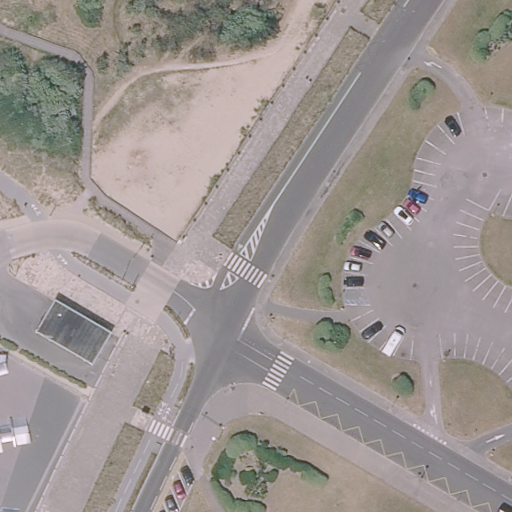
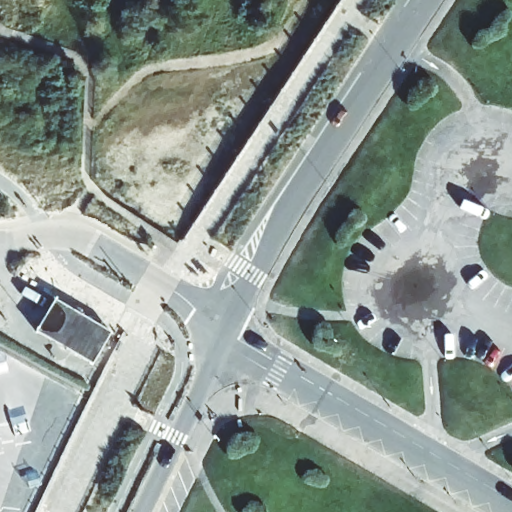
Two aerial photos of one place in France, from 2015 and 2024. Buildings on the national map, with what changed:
unchanged [(110,333),(92,364),(36,332),(55,300),(110,333)]

